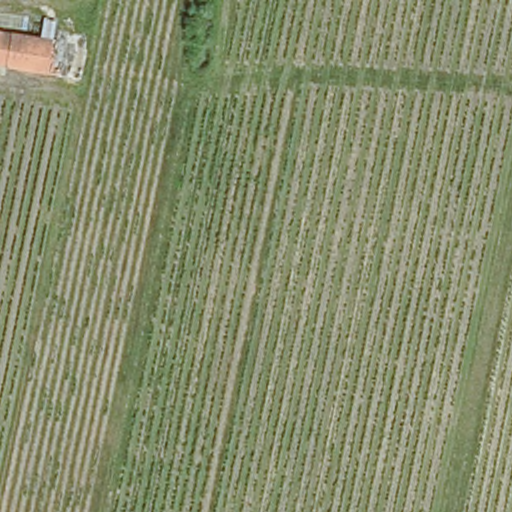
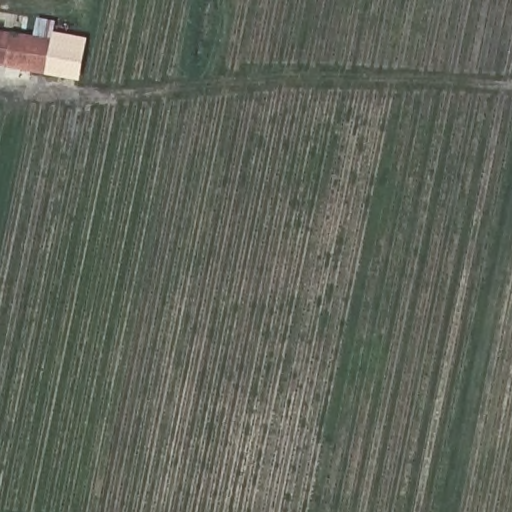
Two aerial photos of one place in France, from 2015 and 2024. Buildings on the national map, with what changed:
unchanged [(38,37),(39,20),(56,21),(46,80),(0,73),(0,32),(38,37)]
new [(54,31),(88,37),(79,81),(47,75),(54,31)]

